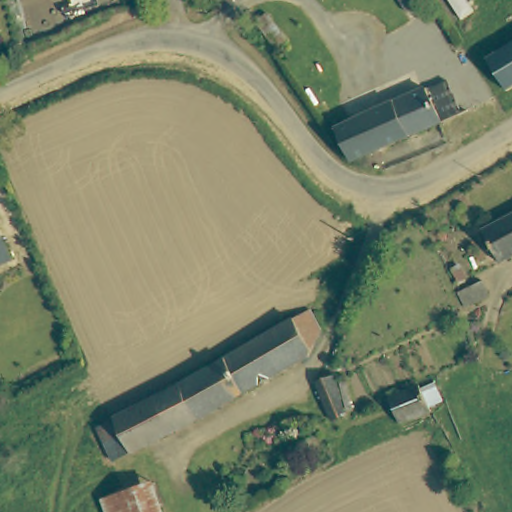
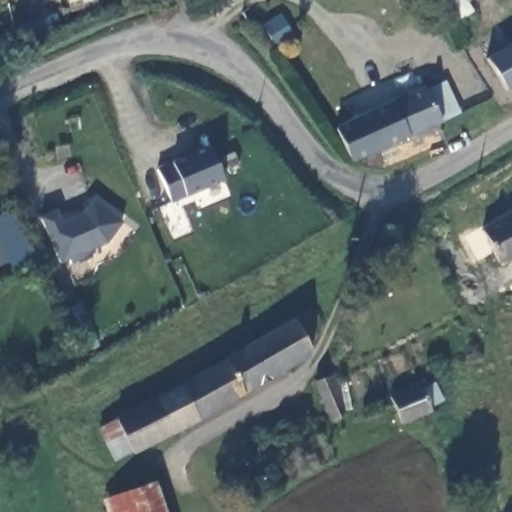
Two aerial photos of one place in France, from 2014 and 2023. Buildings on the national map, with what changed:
unchanged [(512,43),(512,80),(498,50),(512,43)]
unchanged [(350,164),(336,131),(424,96),(443,89),(455,117),(436,125),(438,129),(350,164)]
new [(172,201),(157,167),(170,161),(209,144),(225,180),(187,195),(172,201)]
new [(58,209),(64,221),(83,212),(93,198),(124,220),(107,244),(85,252),(88,257),(69,263),(68,259),(61,262),(41,217),(58,209)]
unchanged [(486,232),(512,220),(512,263),(503,267),(486,232)]
unchanged [(4,266),(0,267),(0,257),(4,266)]
unchanged [(121,421),(196,382),(312,311),(321,327),(306,356),(219,411),(137,454),(122,462),(105,428),(121,421)]
unchanged [(331,427),(328,420),(313,385),(334,375),(351,417),(331,427)]
unchanged [(423,405),(424,409),(394,423),(387,407),(382,396),(429,376),(439,397),(423,405)]
unchanged [(107,507),(156,488),(165,512),(108,512),(107,507)]

